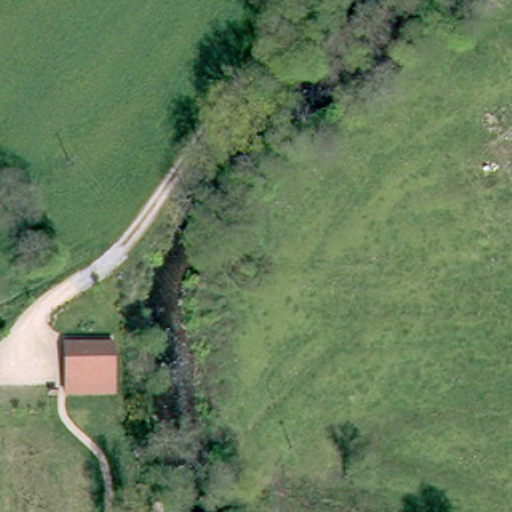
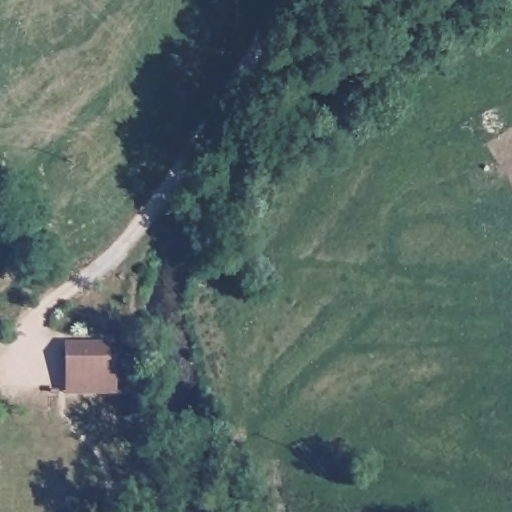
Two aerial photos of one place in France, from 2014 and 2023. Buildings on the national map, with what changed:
unchanged [(117,340),(119,395),(67,394),(67,340),(117,340)]

